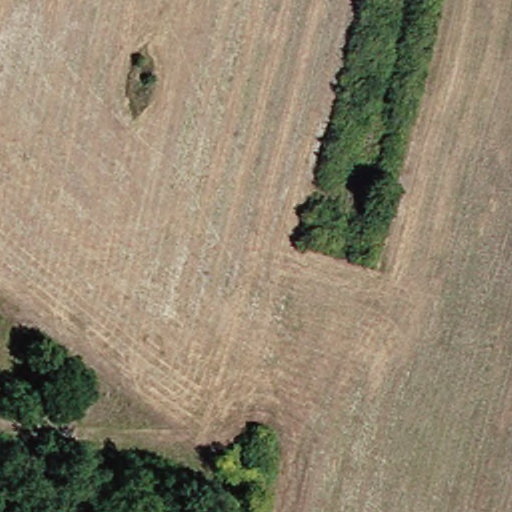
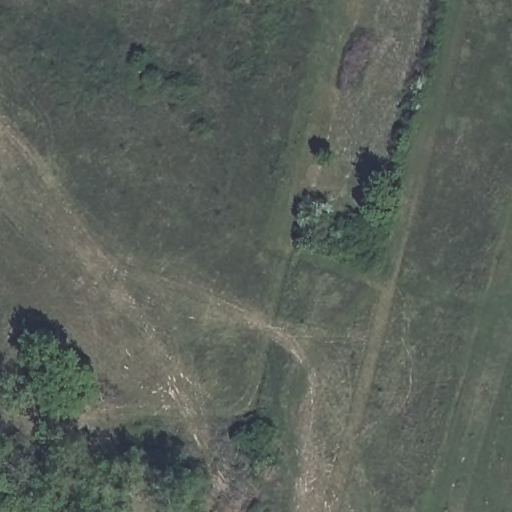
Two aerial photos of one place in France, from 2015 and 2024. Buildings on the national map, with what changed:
[]

